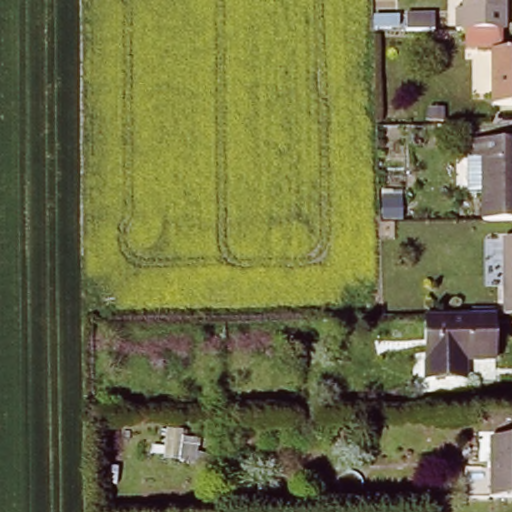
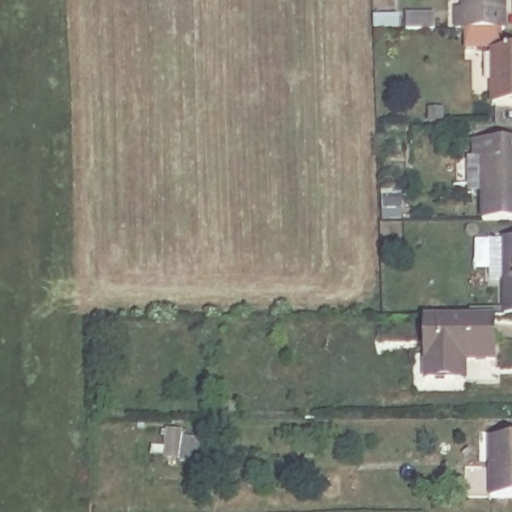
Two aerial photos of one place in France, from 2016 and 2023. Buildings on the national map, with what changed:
unchanged [(460,1),(467,0),(508,0),(508,22),(460,23),(460,1)]
unchanged [(497,44),(512,44),(512,101),(497,101),(497,44)]
unchanged [(486,187),(473,187),(473,152),(479,152),(479,133),(512,133),(512,216),(487,216),(486,187)]
unchanged [(507,230),(512,230),(512,309),(510,309),(507,230)]
unchanged [(460,380),(429,381),(428,315),(497,314),(498,360),(470,361),(470,380),(460,380)]
unchanged [(491,430),(512,430),(512,490),(491,490),(491,430)]

